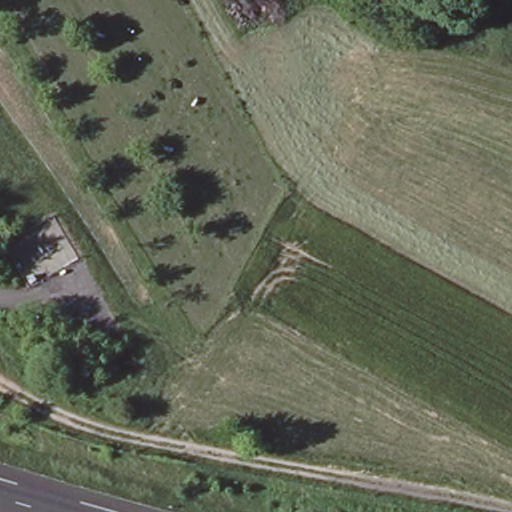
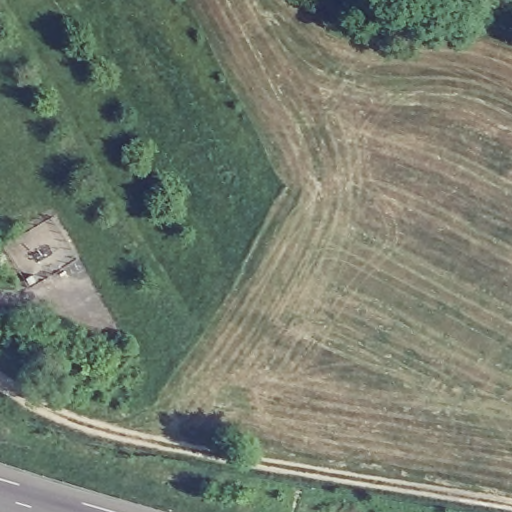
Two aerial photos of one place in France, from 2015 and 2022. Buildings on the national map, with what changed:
[]

